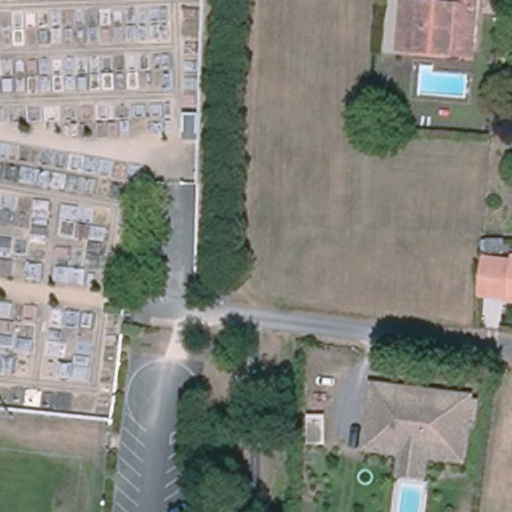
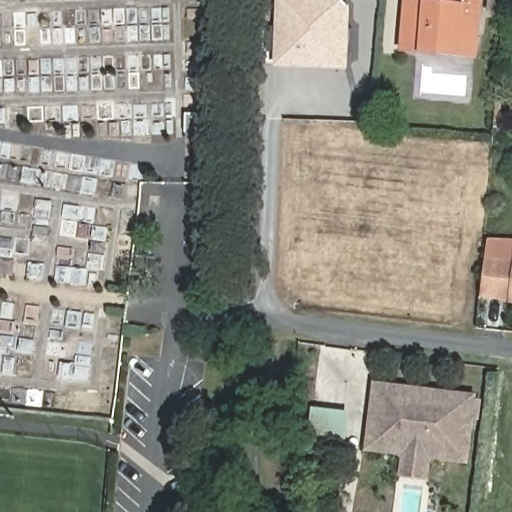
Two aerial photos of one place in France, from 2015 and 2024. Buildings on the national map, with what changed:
new [(345,66),(277,64),(280,0),(342,0),(347,5),(345,66)]
unchanged [(476,50),(402,44),(406,0),(433,0),(460,2),(460,0),(480,0),(476,50)]
unchanged [(511,301),(511,299),(493,297),(483,295),(488,258),(497,260),(512,261),(512,301),(511,301)]
unchanged [(312,402),(311,372),(333,370),(334,401),(312,402)]
unchanged [(437,450),(458,453),(461,433),(462,425),(471,426),(472,426),(471,435),(467,464),(430,460),(427,480),(403,477),(405,456),(368,451),(376,387),(386,388),(406,391),(406,395),(393,393),(386,392),(380,443),(437,450)]
unchanged [(472,426),(471,426),(462,425),(461,433),(458,453),(437,450),(380,443),(386,392),(393,393),(406,395),(406,391),(423,393),(437,395),(455,397),(475,400),(472,426)]

